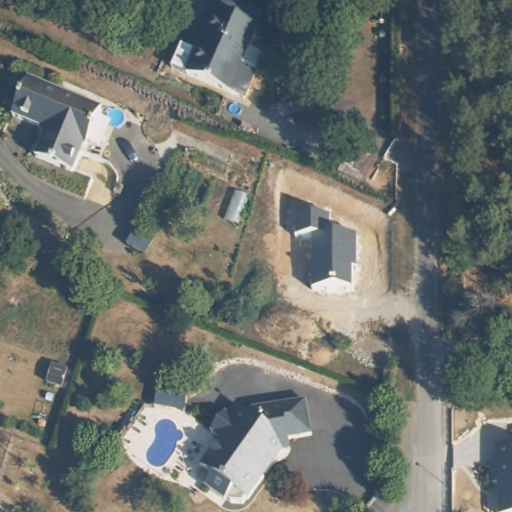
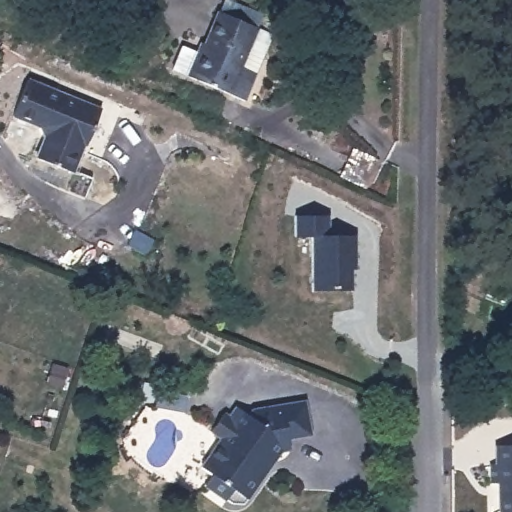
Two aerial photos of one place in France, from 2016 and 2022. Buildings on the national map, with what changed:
unchanged [(253,68),(242,93),(169,64),(177,41),(193,46),(195,39),(203,42),(219,5),(222,0),(235,0),(262,13),(259,22),(242,63),(253,68)]
unchanged [(45,159),(53,135),(44,131),(47,124),(20,113),(35,76),(104,107),(77,171),(45,159)]
unchanged [(312,289),(314,235),(296,235),(295,217),(329,216),(328,234),(356,234),(356,267),(351,267),(352,288),(312,289)]
unchanged [(218,434),(208,426),(220,408),(225,412),(231,401),(244,409),(248,403),(259,401),(302,391),(309,425),(286,431),(288,442),(280,443),(267,447),(256,464),(264,470),(249,492),(233,483),(227,494),(205,480),(213,469),(201,461),(205,454),(218,434)]
unchanged [(512,509),(500,510),(499,479),(489,478),(488,459),(493,459),(494,443),(512,442),(512,509)]

